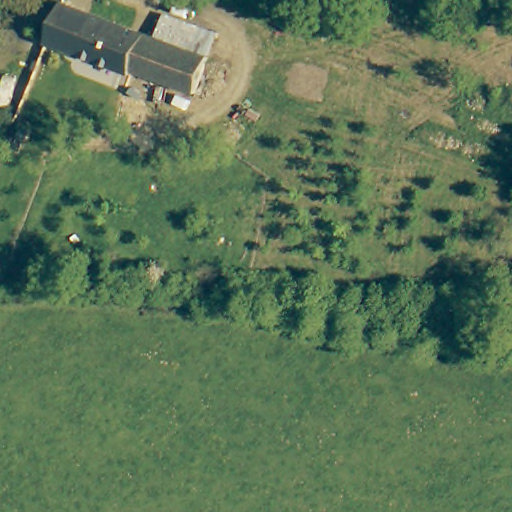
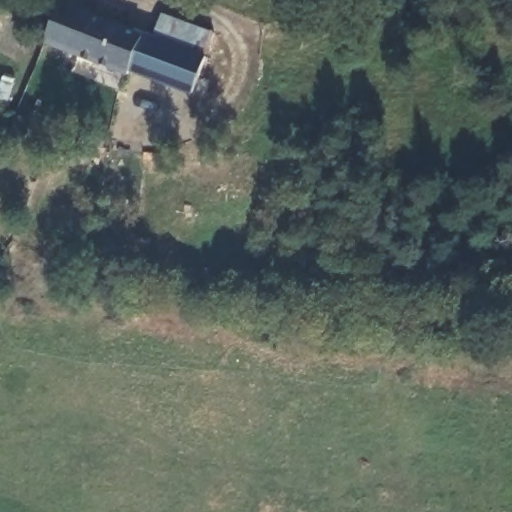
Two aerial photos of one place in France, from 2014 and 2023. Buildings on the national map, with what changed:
unchanged [(73,2),(88,8),(151,31),(157,13),(159,8),(213,26),(205,51),(193,89),(181,84),(128,65),(126,73),(74,51),(42,38),(57,0),(69,0),(73,2)]

